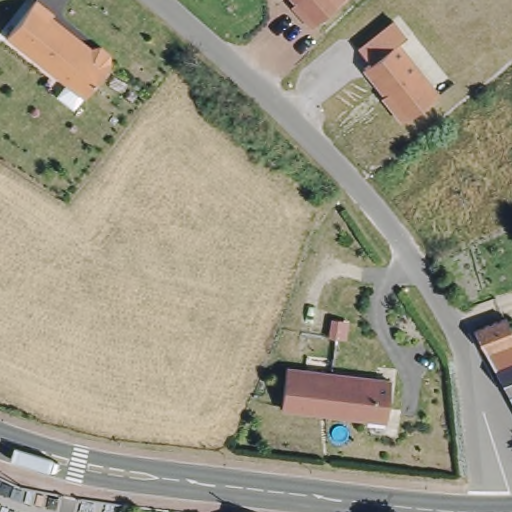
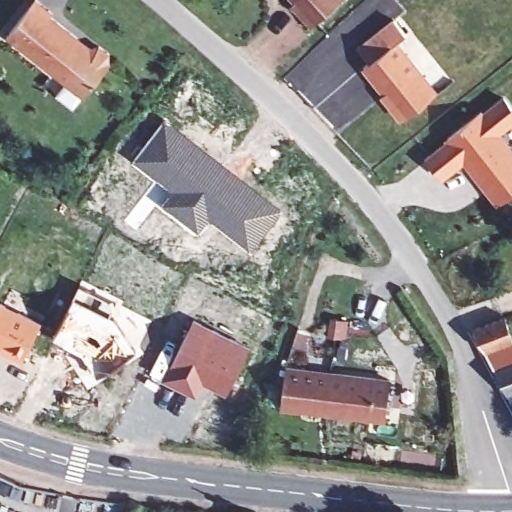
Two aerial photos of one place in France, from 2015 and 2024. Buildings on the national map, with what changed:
unchanged [(292,2),(294,0),(339,0),(317,20),(312,25),(292,2)]
unchanged [(5,42),(33,5),(51,19),(48,22),(76,43),(74,45),(86,55),(87,53),(91,55),(92,53),(97,52),(107,59),(107,64),(105,66),(109,69),(82,103),(5,42)]
unchanged [(411,119),(400,105),(402,103),(394,94),(392,95),(370,68),(375,63),(365,50),(400,21),(412,36),(402,44),(442,94),(411,119)]
new [(462,158),(440,174),(426,155),(448,139),(447,137),(481,111),(482,114),(504,97),(512,108),(512,120),(496,132),(512,153),(512,188),(495,201),(482,184),(475,175),(462,158)]
new [(253,249),(212,217),(202,230),(164,202),(174,189),(133,158),(166,116),(285,206),(253,249)]
new [(116,299),(110,313),(117,316),(136,350),(99,374),(83,352),(54,338),(80,283),(116,299)]
new [(22,361),(0,350),(0,304),(2,300),(42,320),(22,361)]
unchanged [(507,402),(496,379),(490,365),(472,332),(470,326),(506,315),(512,330),(512,409),(507,402)]
new [(251,346),(227,394),(205,382),(197,396),(162,379),(194,318),(251,346)]
unchanged [(324,375),(320,415),(275,411),(279,371),(324,375)]
unchanged [(324,375),(384,382),(380,422),(320,415),(324,375)]

